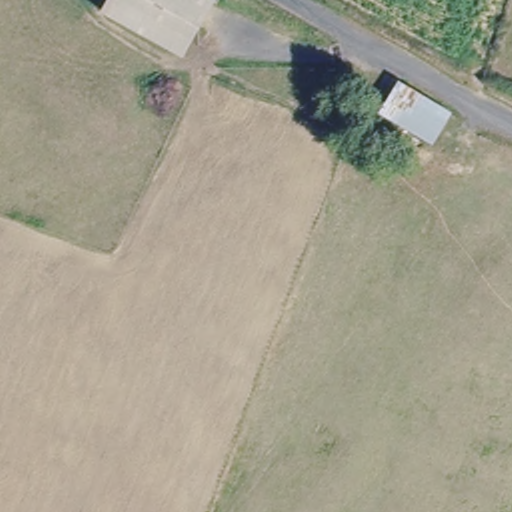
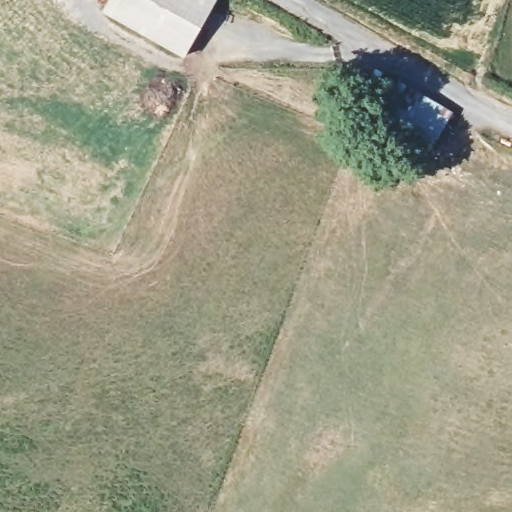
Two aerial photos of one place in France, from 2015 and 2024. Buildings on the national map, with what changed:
unchanged [(179,65),(161,55),(88,18),(97,0),(209,0),(183,57),(179,65)]
unchanged [(449,106),(433,137),(382,107),(397,76),(449,106)]

